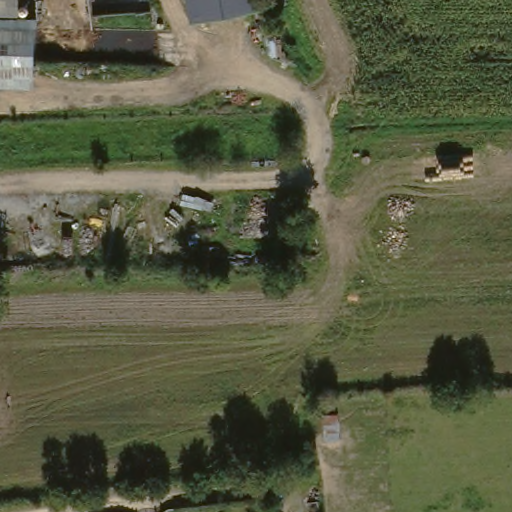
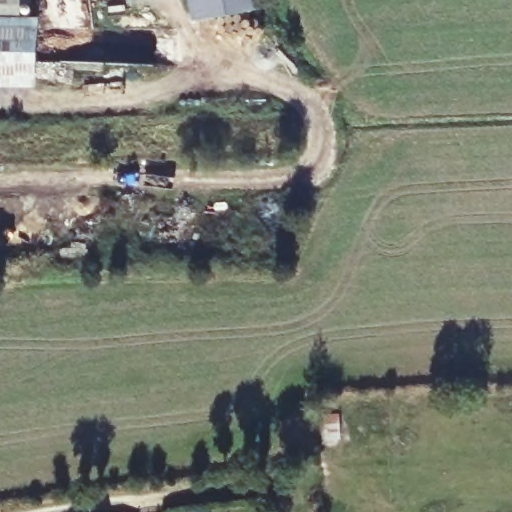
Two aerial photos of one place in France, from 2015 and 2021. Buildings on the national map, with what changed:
unchanged [(0,21),(0,0),(14,0),(14,21),(0,21)]
unchanged [(14,0),(22,0),(21,4),(31,4),(31,17),(39,18),(35,88),(0,87),(0,21),(14,21),(14,0)]
unchanged [(190,23),(186,0),(278,0),(279,7),(190,23)]

